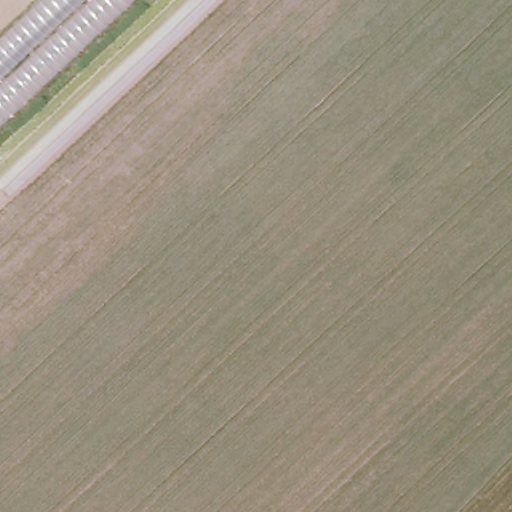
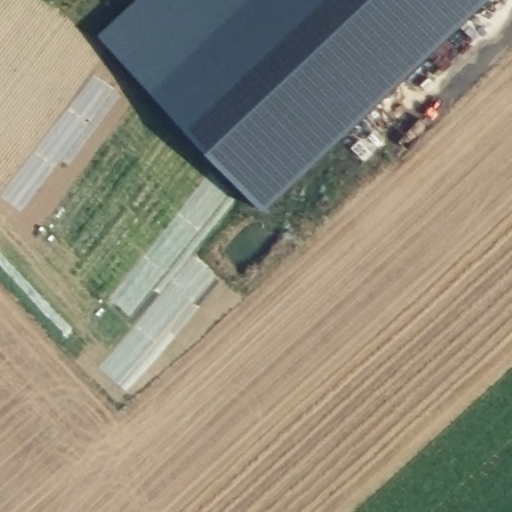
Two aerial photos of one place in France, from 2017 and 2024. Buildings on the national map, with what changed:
unchanged [(131,0),(97,33),(0,123),(0,35),(37,0),(131,0)]
new [(483,0),(262,208),(97,33),(131,0),(483,0)]
new [(360,137),(372,148),(363,156),(352,144),(360,137)]

